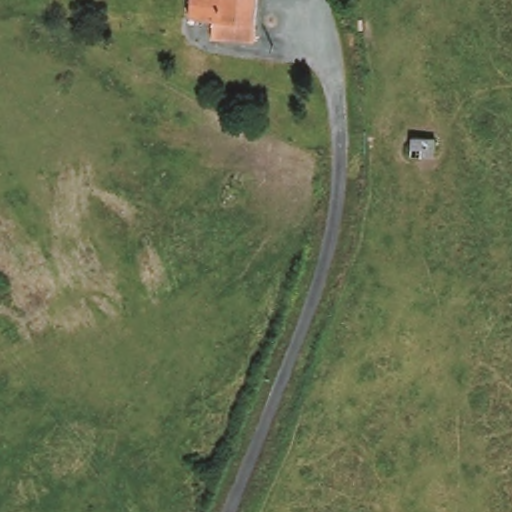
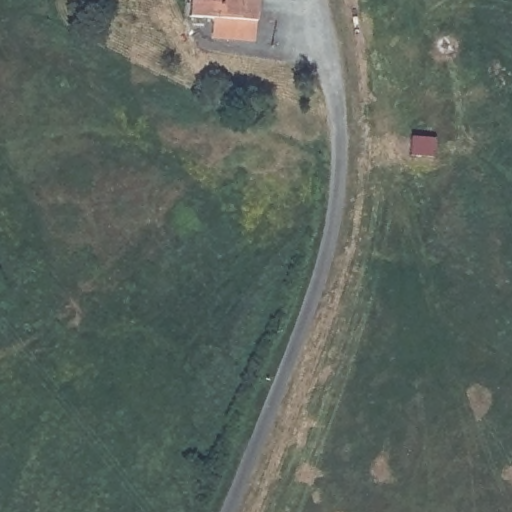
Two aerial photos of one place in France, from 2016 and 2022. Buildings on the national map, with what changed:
unchanged [(216,38),(218,18),(195,16),(196,0),(262,0),(259,41),(216,38)]

